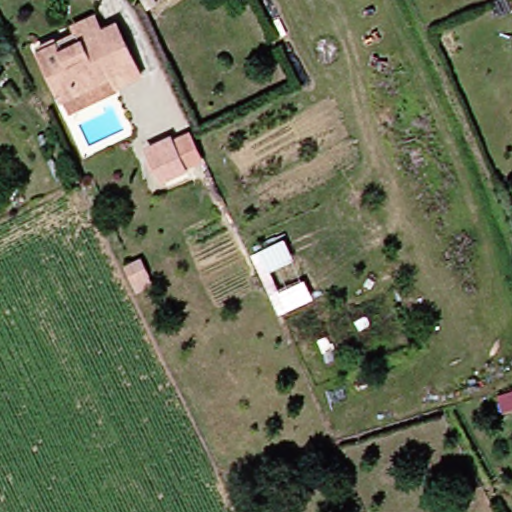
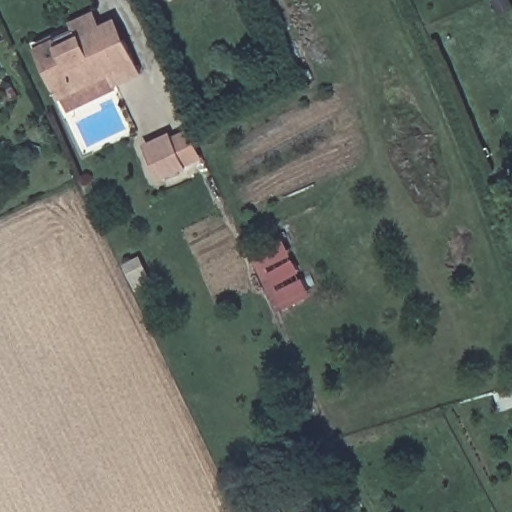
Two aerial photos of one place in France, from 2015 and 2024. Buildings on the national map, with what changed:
unchanged [(111,90),(104,78),(55,103),(31,53),(50,44),(71,34),(68,28),(89,18),(95,31),(98,30),(109,24),(119,44),(136,77),(111,90)]
unchanged [(8,77),(0,83),(0,65),(8,77)]
unchanged [(186,132),(201,162),(176,173),(162,143),(186,132)]
new [(276,311),(251,254),(284,239),(311,295),(276,311)]

